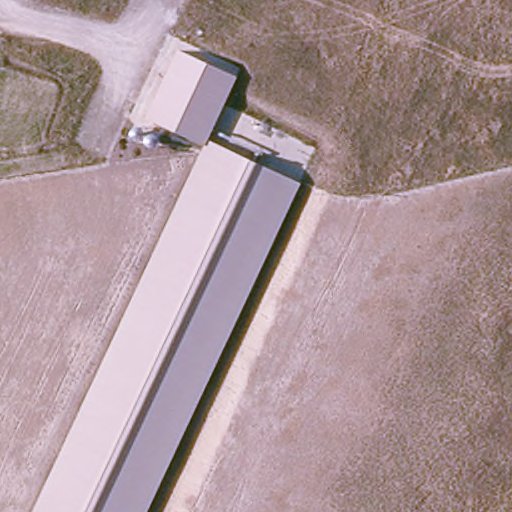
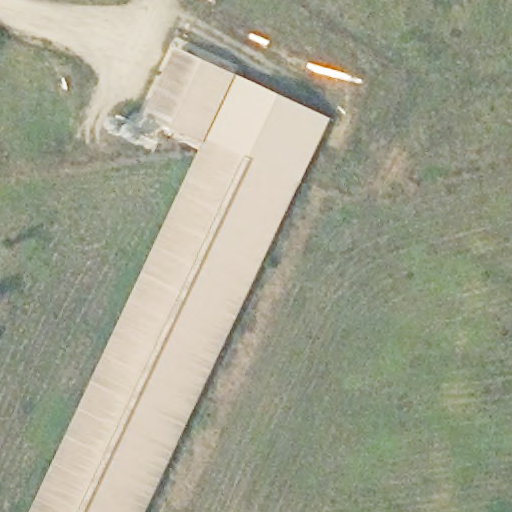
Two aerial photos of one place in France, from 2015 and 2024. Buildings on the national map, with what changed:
unchanged [(146,512),(32,512),(205,146),(146,119),(178,48),(238,77),(210,137),(299,182),(146,512)]
new [(330,118),(299,182),(210,137),(238,77),(330,118)]
new [(114,131),(114,124),(118,120),(142,130),(143,132),(144,134),(143,136),(142,140),(139,141),(136,141),(116,134),(114,131)]

